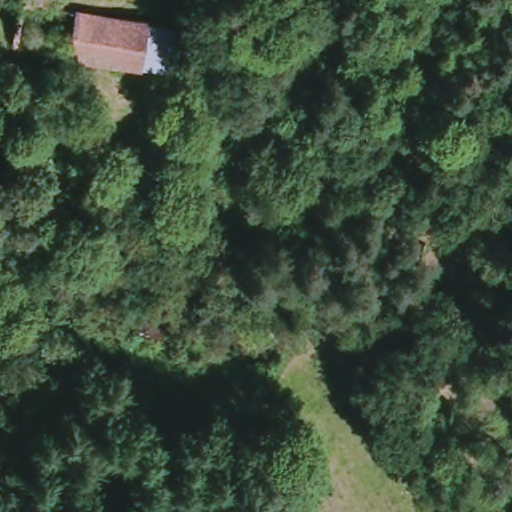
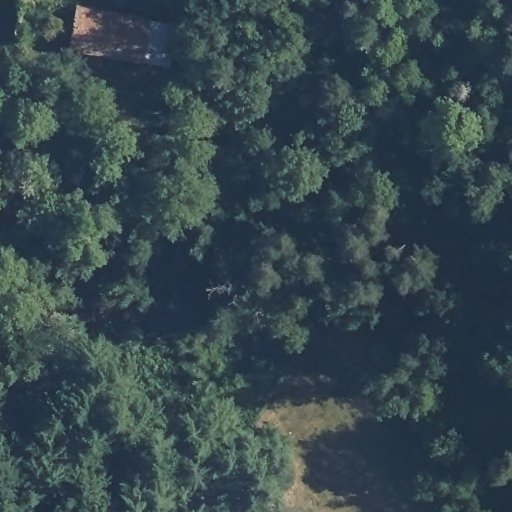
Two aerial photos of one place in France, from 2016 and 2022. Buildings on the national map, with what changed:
unchanged [(151,21),(142,58),(70,45),(78,9),(151,21)]
unchanged [(170,64),(142,58),(151,21),(176,26),(170,64)]

